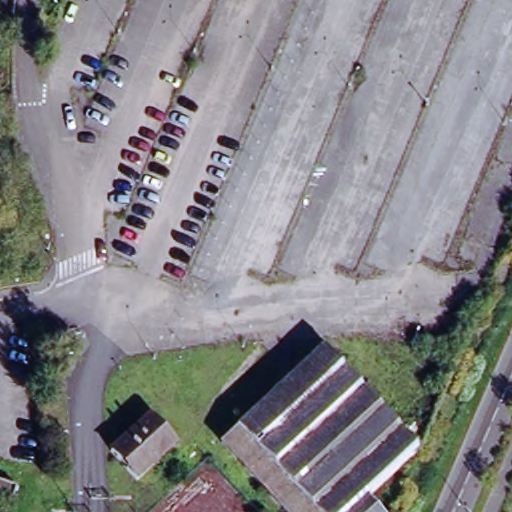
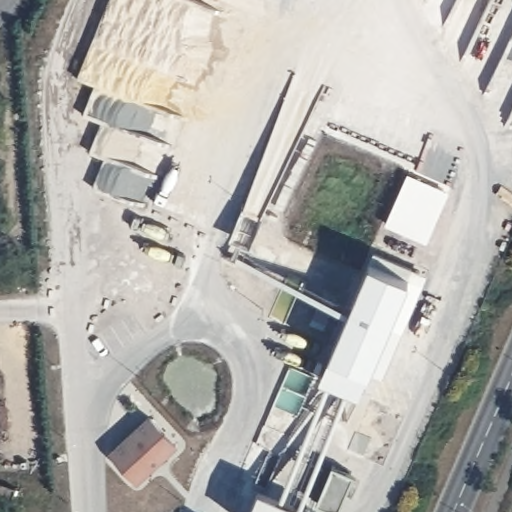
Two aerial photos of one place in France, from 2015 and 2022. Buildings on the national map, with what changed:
new [(415,274),(360,409),(312,388),(371,257),(415,274)]
demolished [(368,499),(381,512),(286,512),(221,442),(324,348),(420,452),(368,499)]
unchanged [(109,456),(149,419),(177,449),(137,484),(109,456)]
new [(320,512),(245,512),(256,479),(320,512)]
unchanged [(0,480),(17,485),(14,497),(0,492),(0,480)]

